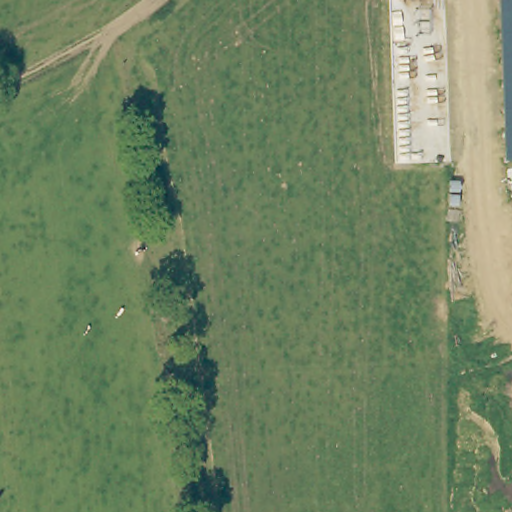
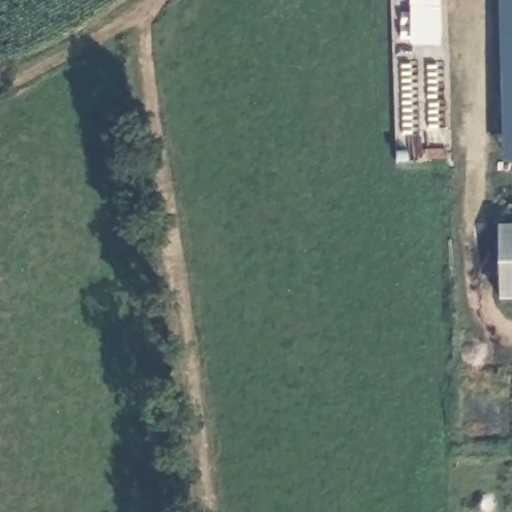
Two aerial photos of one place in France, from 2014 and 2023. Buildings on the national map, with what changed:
unchanged [(498,0),(512,0),(512,158),(503,158),(498,0)]
new [(500,300),(497,223),(512,222),(512,299),(500,300)]

